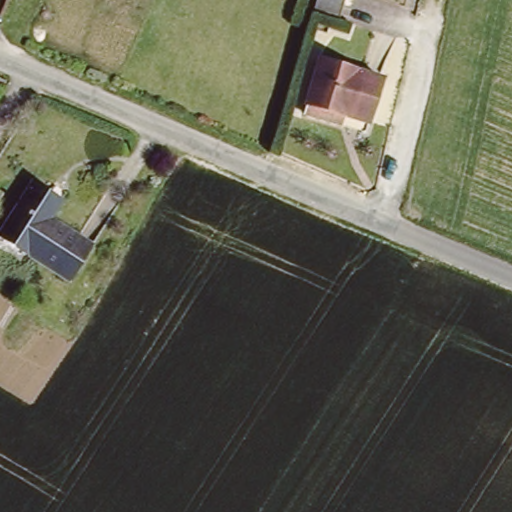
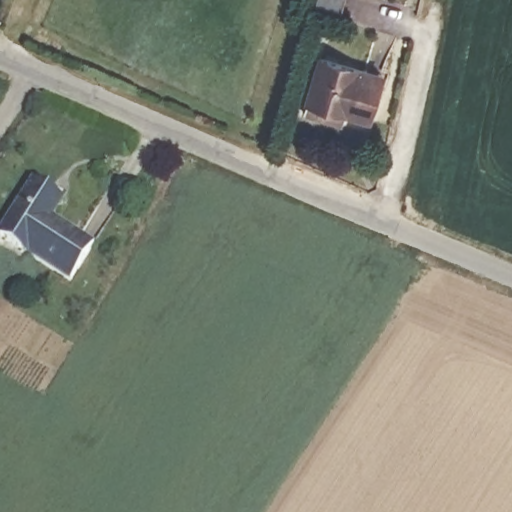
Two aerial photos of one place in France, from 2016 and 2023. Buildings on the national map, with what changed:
unchanged [(311,11),(315,0),(344,0),(338,19),(311,11)]
unchanged [(318,59),(379,75),(367,120),(346,114),(343,125),(304,114),(307,103),(318,59)]
unchanged [(59,202),(66,206),(54,226),(90,248),(68,286),(0,243),(0,231),(29,184),(59,202)]

